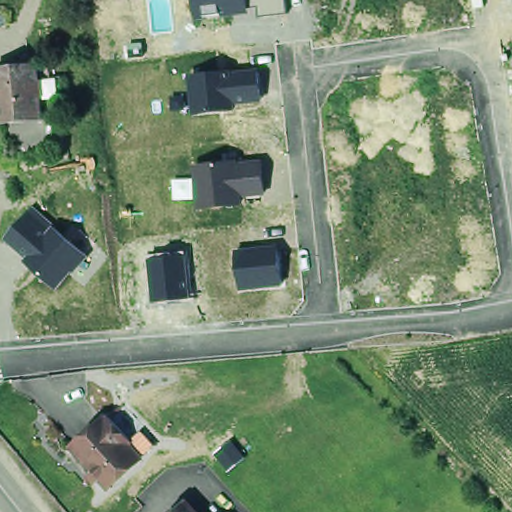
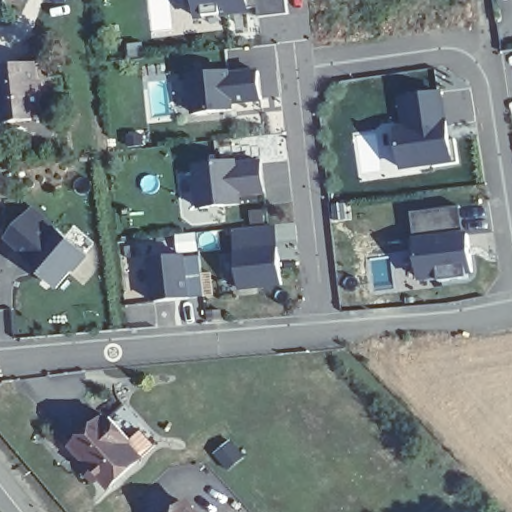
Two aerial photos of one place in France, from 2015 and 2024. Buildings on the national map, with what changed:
unchanged [(259,7),(247,9),(247,14),(195,19),(193,0),(286,0),(288,14),(260,17),(259,7)]
unchanged [(7,125),(2,89),(0,89),(0,76),(0,70),(42,65),(48,120),(7,125)]
unchanged [(262,102),(233,106),(234,112),(192,116),(188,77),(258,71),(262,102)]
new [(438,92),(448,163),(394,172),(388,134),(400,133),(396,99),(438,92)]
unchanged [(265,195),(242,197),(243,207),(198,210),(194,166),(262,162),(265,195)]
unchanged [(57,291),(25,262),(27,259),(5,239),(34,207),(88,256),(57,291)]
new [(475,276),(415,282),(407,213),(460,208),(462,236),(468,234),(475,276)]
unchanged [(238,291),(235,251),(232,230),(277,226),(278,247),(282,286),(238,291)]
unchanged [(153,305),(149,257),(184,254),(190,300),(153,305)]
unchanged [(110,412),(146,466),(102,496),(67,447),(110,412)]
unchanged [(175,508),(178,512),(170,512),(175,508)]

